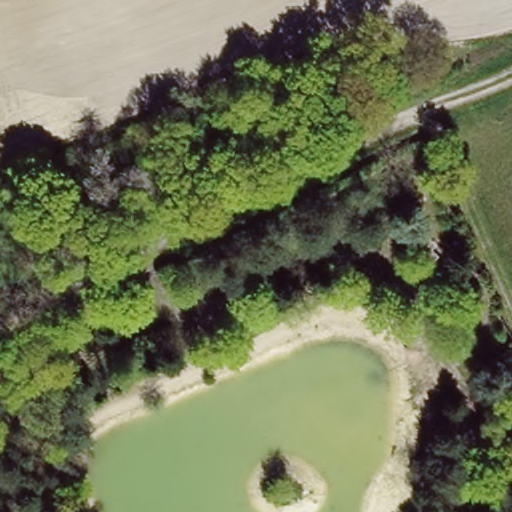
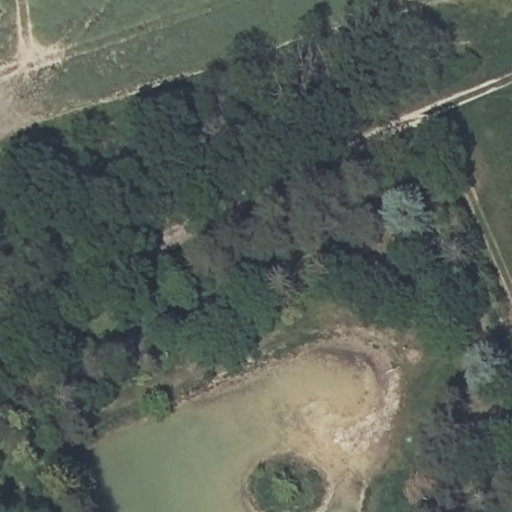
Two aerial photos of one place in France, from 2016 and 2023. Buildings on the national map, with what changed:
unchanged [(425,236),(444,254),(430,266),(413,248),(425,236)]

